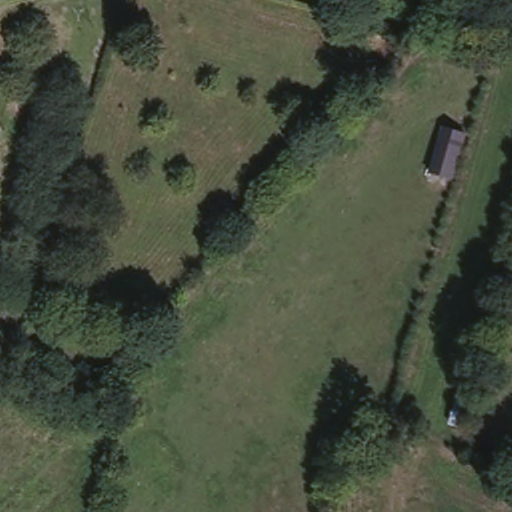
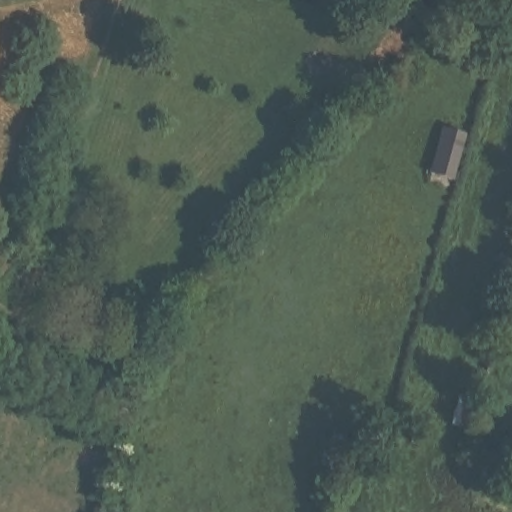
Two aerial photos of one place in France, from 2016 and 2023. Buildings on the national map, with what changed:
unchanged [(431,65),(438,47),(459,55),(455,72),(431,65)]
unchanged [(467,131),(454,175),(426,169),(437,125),(467,131)]

